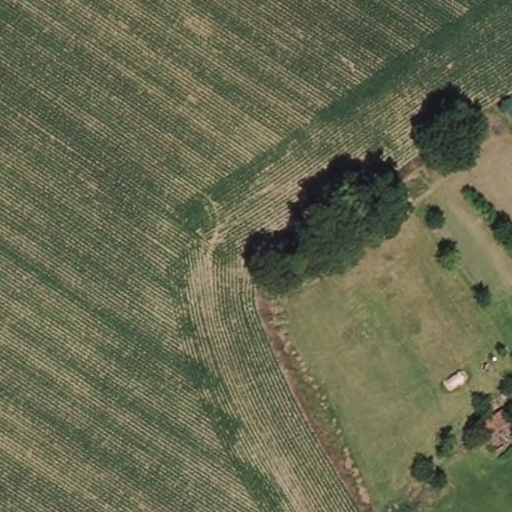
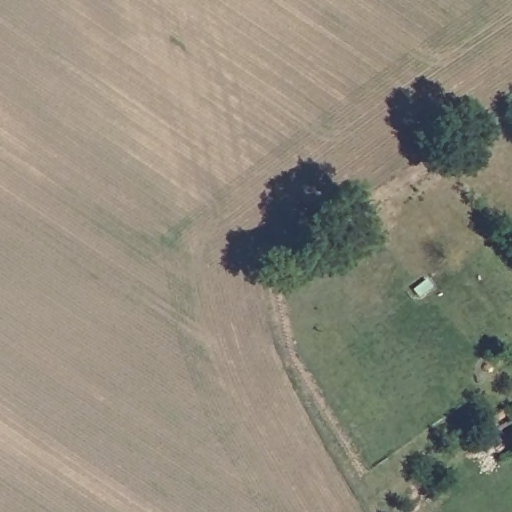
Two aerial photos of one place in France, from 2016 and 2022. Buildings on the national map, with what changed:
unchanged [(505,408),(512,419),(512,422),(486,438),(478,426),(505,408)]

